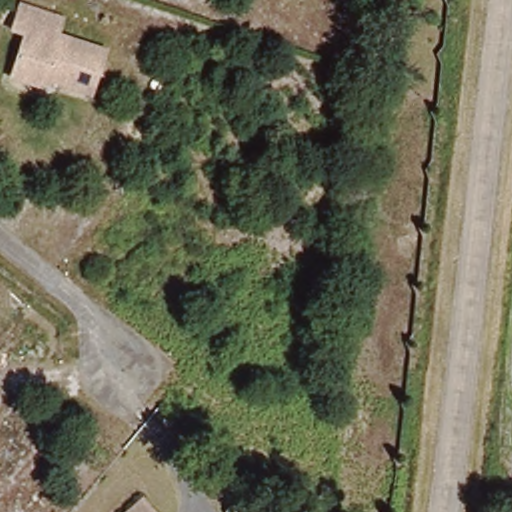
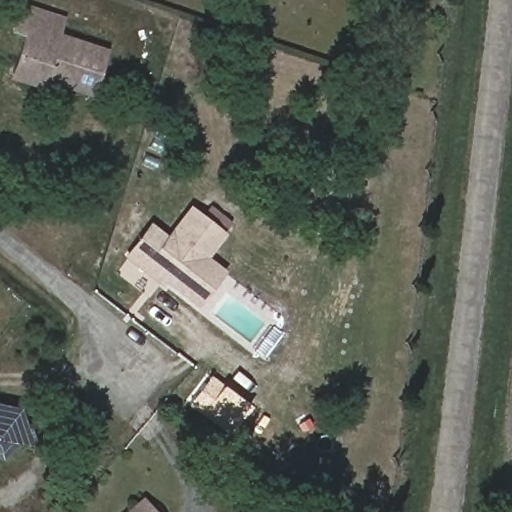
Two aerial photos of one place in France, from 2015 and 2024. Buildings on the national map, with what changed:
unchanged [(44,81),(42,88),(13,79),(28,37),(16,34),(24,8),(64,21),(59,37),(107,53),(93,96),(44,81)]
new [(168,235),(192,205),(229,233),(210,257),(228,271),(196,312),(124,257),(151,222),(168,235)]
new [(15,442),(0,457),(0,404),(19,408),(31,446),(15,442)]
unchanged [(110,512),(136,489),(154,512),(110,512)]

